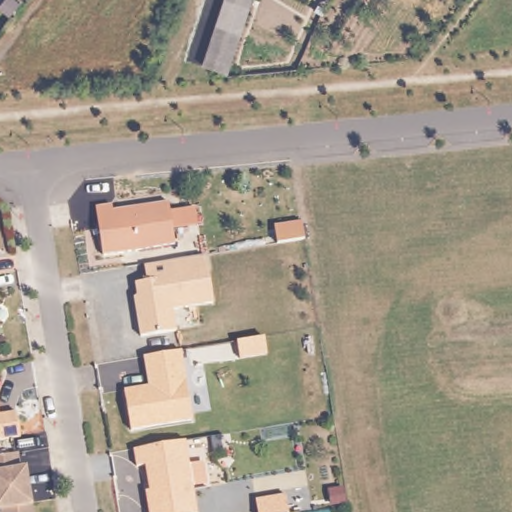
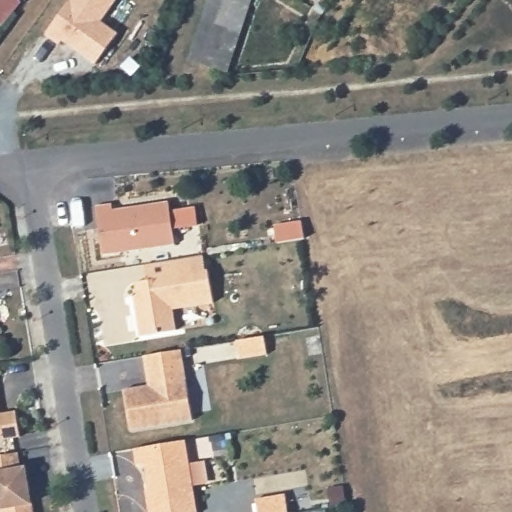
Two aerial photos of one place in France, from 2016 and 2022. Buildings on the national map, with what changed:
new [(97,64),(64,40),(59,44),(45,34),(70,0),(118,0),(103,21),(119,34),(97,64)]
unchanged [(201,59),(222,0),(250,0),(226,67),(201,59)]
unchanged [(317,0),(323,4),(319,9),(312,5),(316,0),(317,0)]
unchanged [(113,207),(114,213),(170,204),(176,247),(104,257),(97,209),(113,207)]
unchanged [(138,298),(136,285),(148,283),(145,267),(172,263),(175,263),(204,258),(207,274),(209,273),(214,305),(173,312),(177,333),(141,339),(136,308),(135,300),(138,298)]
new [(267,337),(269,355),(242,359),(239,341),(267,337)]
unchanged [(130,431),(124,391),(149,387),(147,376),(144,357),(181,352),(192,422),(130,431)]
unchanged [(19,442),(0,444),(0,418),(15,416),(19,442)]
unchanged [(195,512),(147,512),(144,493),(148,492),(144,466),(135,468),(133,450),(184,442),(195,512)]
unchanged [(0,509),(0,456),(16,454),(19,469),(24,469),(28,493),(29,503),(31,512),(0,512),(0,509)]
unchanged [(256,500),(286,496),(289,512),(258,512),(256,500)]

